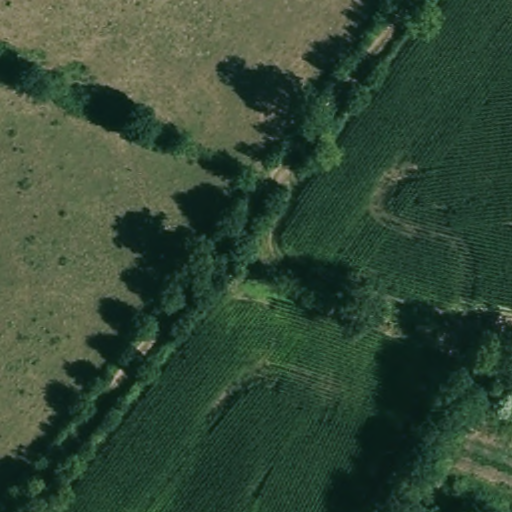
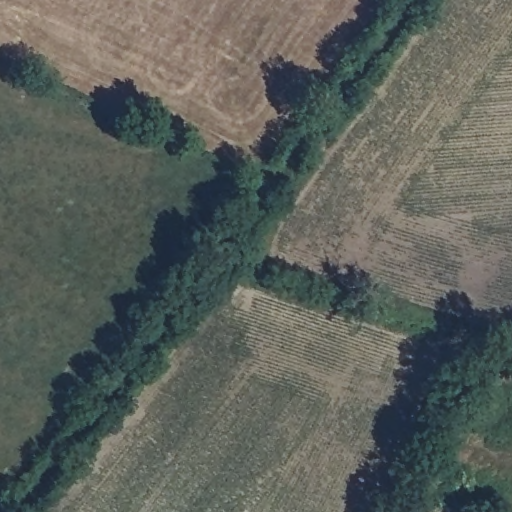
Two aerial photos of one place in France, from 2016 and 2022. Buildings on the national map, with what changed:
unchanged [(442,512),(432,512),(434,507),(442,512)]

